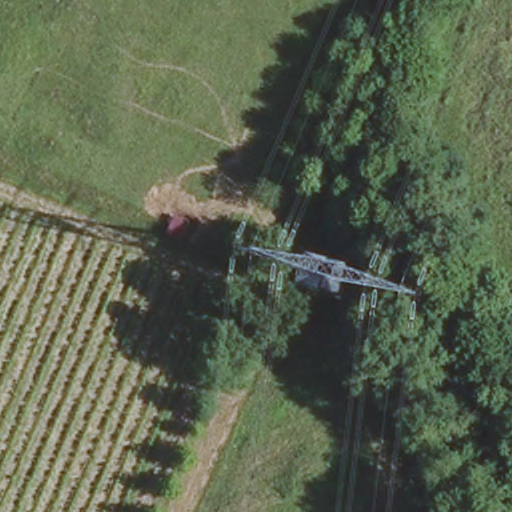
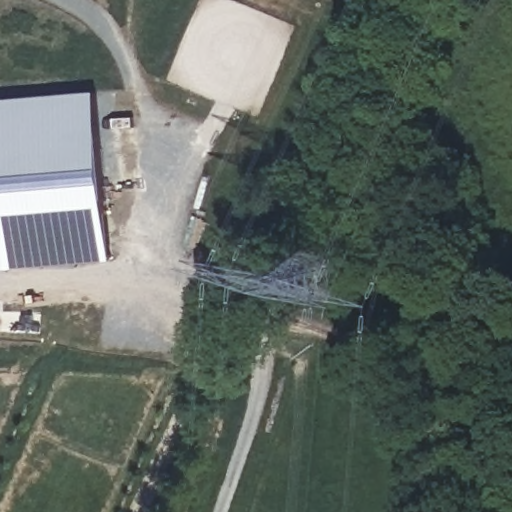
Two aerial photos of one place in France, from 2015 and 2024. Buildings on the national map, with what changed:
new [(111,258),(0,268),(0,95),(95,87),(111,258)]

